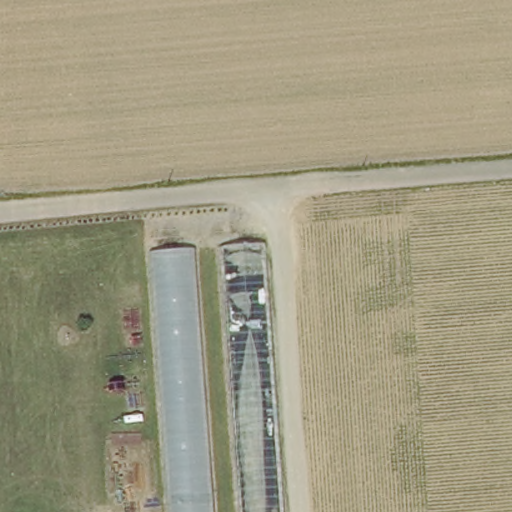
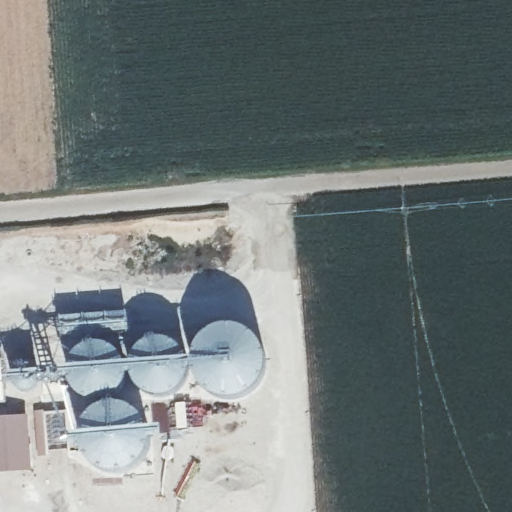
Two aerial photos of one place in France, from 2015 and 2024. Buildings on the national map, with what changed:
demolished [(283,512),(167,512),(146,247),(267,249),(283,512)]
new [(68,365),(72,360),(83,347),(93,344),(108,345),(121,355),(126,362),(131,362),(134,355),(144,344),(156,339),(172,341),(181,348),(186,355),(193,353),(202,339),(215,330),(236,327),(249,332),(260,342),(265,351),(266,365),(264,377),(261,386),(245,398),(229,401),(214,397),(203,388),(196,380),(186,385),(176,395),(161,399),(151,398),(139,390),(133,378),(127,380),(123,389),(116,396),(106,402),(96,403),(86,400),(78,395),(70,385),(31,392),(23,392),(13,387),(9,379),(11,370),(15,365),(68,365)]
new [(8,406),(0,407),(0,360),(3,360),(8,406)]
new [(83,436),(83,426),(88,416),(100,407),(112,403),(123,405),(132,408),(141,415),(159,440),(143,464),(132,472),(119,476),(103,475),(90,467),(80,453),(76,437),(83,436)]
new [(32,471),(0,475),(0,420),(28,417),(32,471)]

